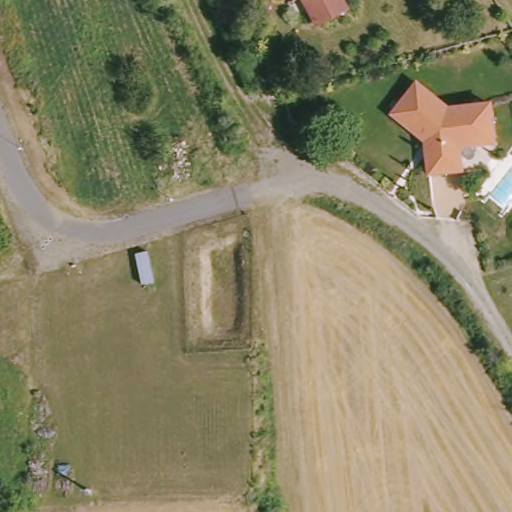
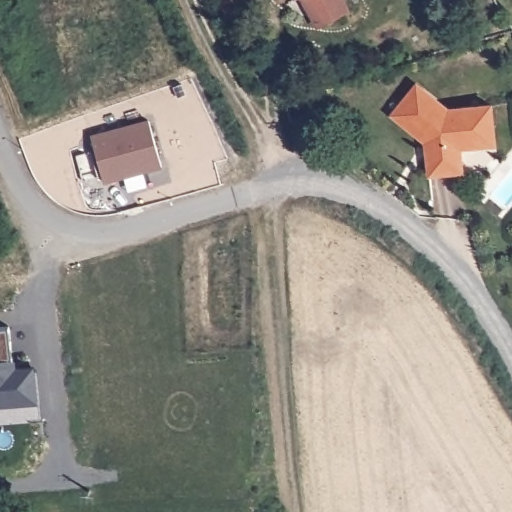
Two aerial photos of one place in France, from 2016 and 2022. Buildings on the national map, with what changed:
unchanged [(242,9),(229,15),(223,0),(238,0),(242,9)]
unchanged [(311,12),(303,0),(331,0),(311,12)]
unchanged [(476,134),(469,134),(457,143),(457,151),(439,150),(438,174),(403,171),(405,148),(411,143),(378,105),(408,78),(434,109),(477,112),(476,134)]
new [(103,182),(90,136),(148,119),(161,165),(103,182)]
new [(5,425),(0,425),(0,329),(7,328),(11,371),(29,369),(33,401),(35,422),(5,425)]

